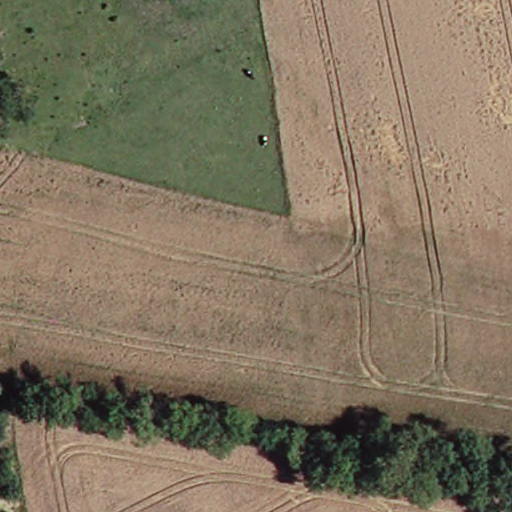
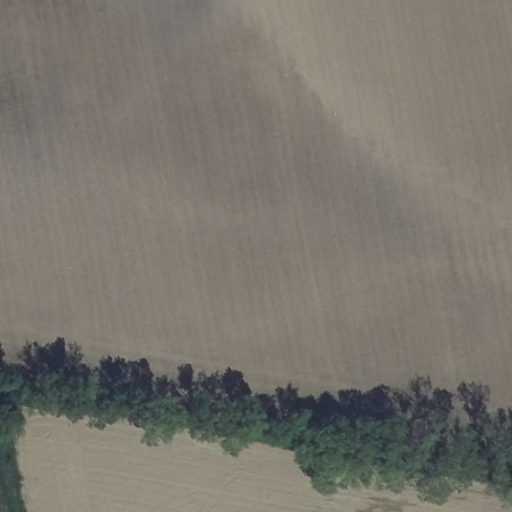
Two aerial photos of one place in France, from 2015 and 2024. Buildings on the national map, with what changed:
[]

